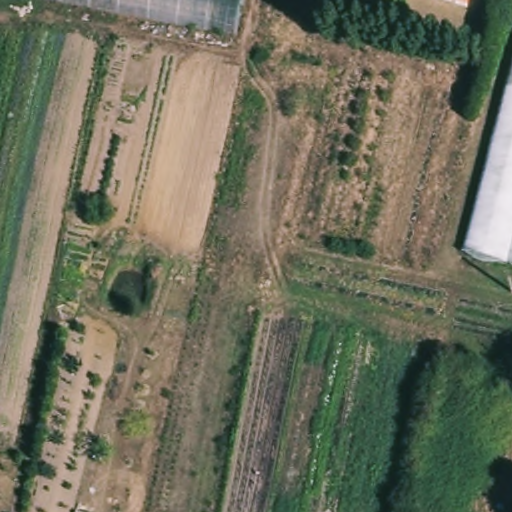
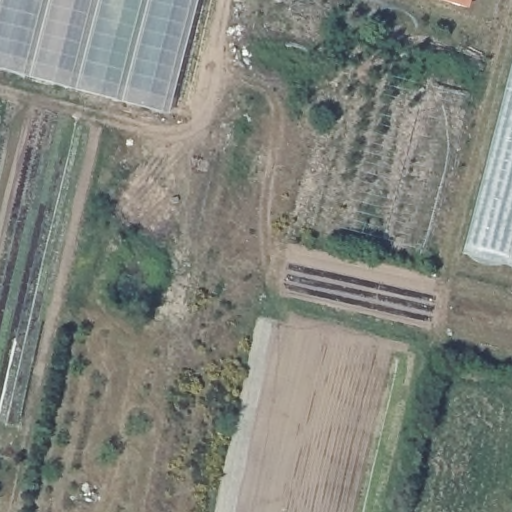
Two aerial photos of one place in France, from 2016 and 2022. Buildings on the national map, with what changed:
new [(0,0),(197,0),(168,113),(0,69),(0,0)]
demolished [(39,0),(248,0),(241,38),(39,0)]
unchanged [(426,0),(470,0),(468,9),(426,0)]
unchanged [(457,253),(512,46),(512,267),(457,253)]

